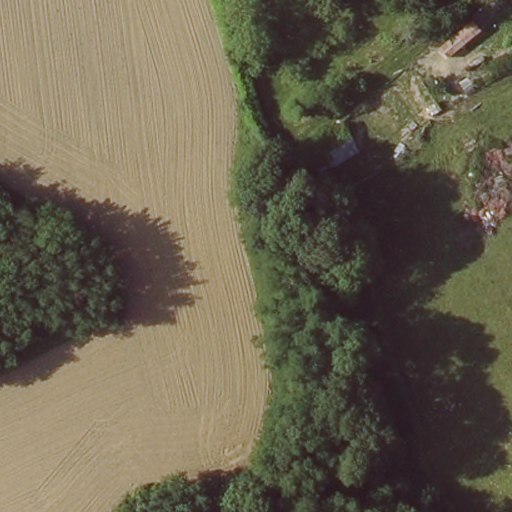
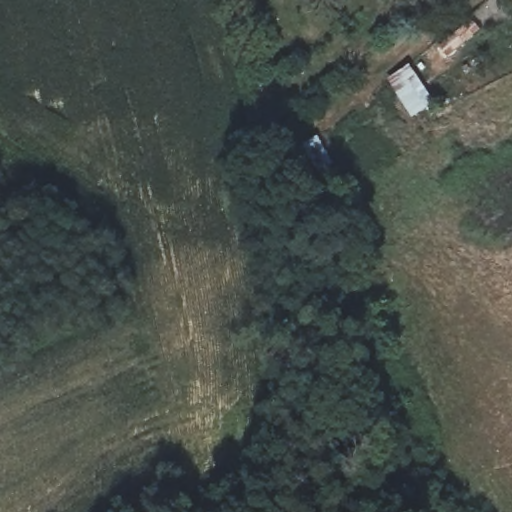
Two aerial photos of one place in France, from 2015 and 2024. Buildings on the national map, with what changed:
unchanged [(360,159),(324,177),(305,148),(342,127),(360,159)]

